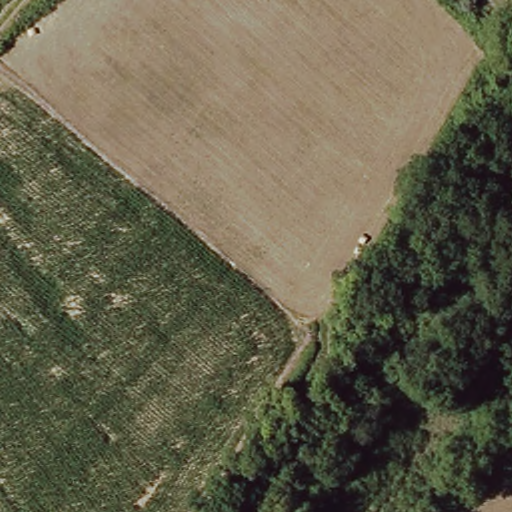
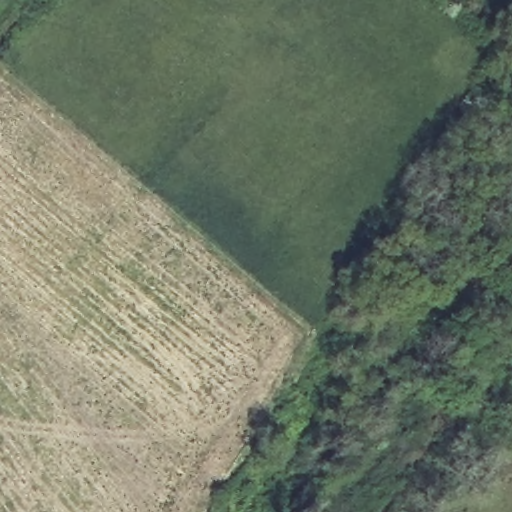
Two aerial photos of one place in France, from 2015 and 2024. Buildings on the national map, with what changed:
[]

